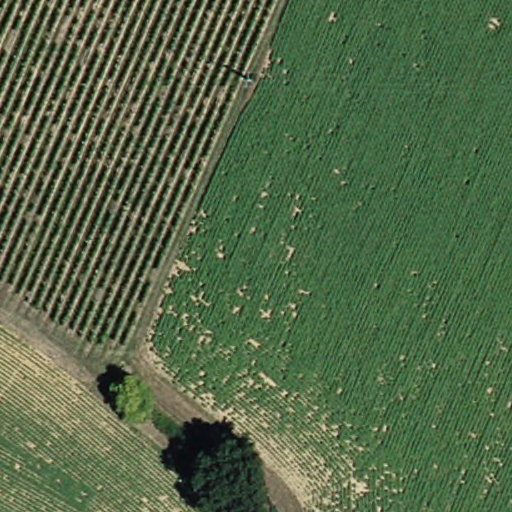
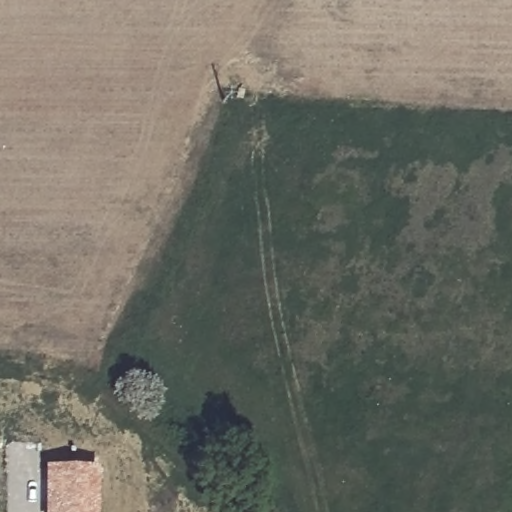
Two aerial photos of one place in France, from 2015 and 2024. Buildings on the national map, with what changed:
new [(43,512),(43,466),(98,465),(98,512),(43,512)]

